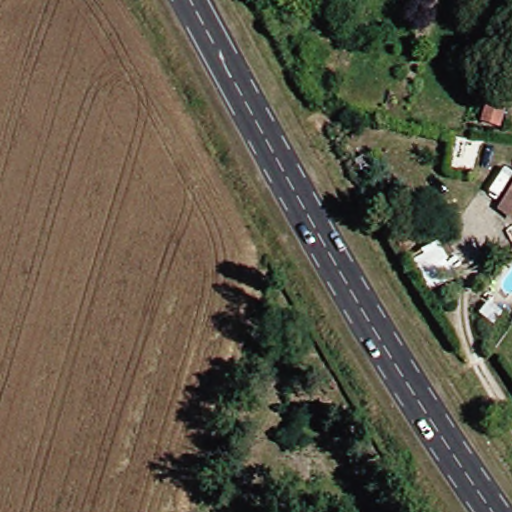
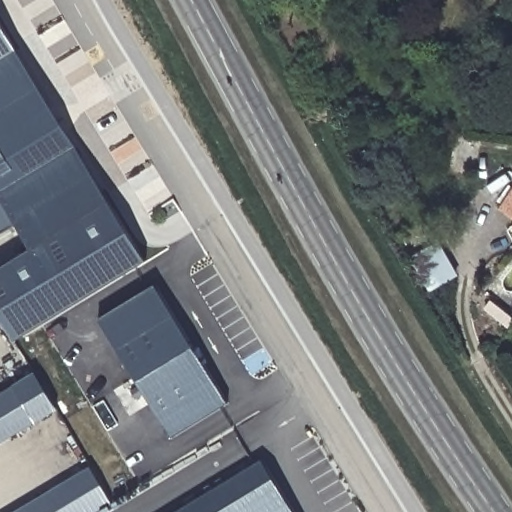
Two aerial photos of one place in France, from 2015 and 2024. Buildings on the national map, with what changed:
new [(13,342),(0,319),(0,267),(31,249),(0,198),(0,21),(146,260),(13,342)]
unchanged [(483,119),(490,98),(507,103),(500,125),(483,119)]
unchanged [(512,217),(496,205),(512,184),(512,217)]
new [(98,319),(155,284),(229,403),(173,438),(98,319)]
new [(53,410),(0,443),(0,396),(32,377),(53,410)]
new [(263,459),(294,512),(177,512),(263,459)]
new [(113,504),(100,512),(10,512),(89,466),(113,504)]

